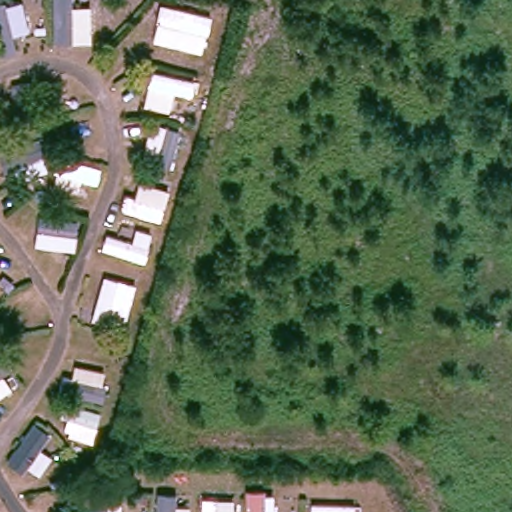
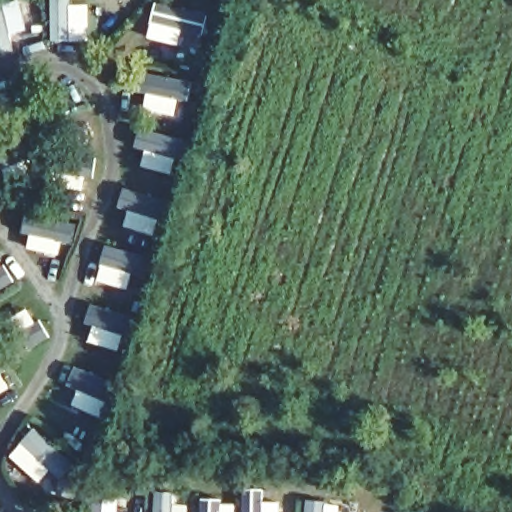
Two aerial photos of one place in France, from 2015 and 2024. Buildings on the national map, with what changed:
[]

